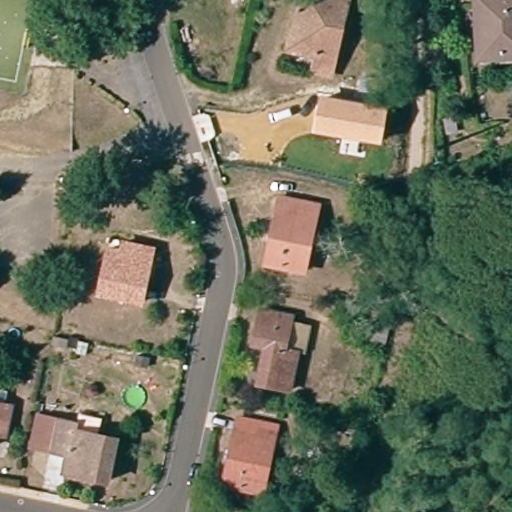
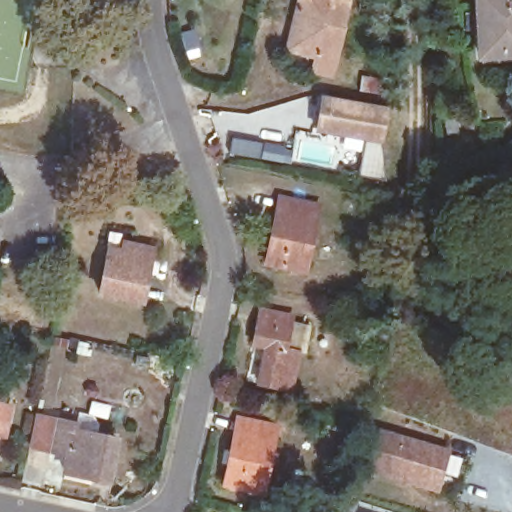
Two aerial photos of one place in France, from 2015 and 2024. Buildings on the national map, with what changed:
unchanged [(314,63),(318,47),(290,39),(301,0),(352,0),(330,69),(314,63)]
unchanged [(477,0),(512,0),(512,55),(487,60),(477,0)]
unchanged [(390,28),(367,22),(371,7),(389,11),(390,28)]
unchanged [(384,139),(320,127),(327,96),(387,109),(384,139)]
unchanged [(269,257),(283,192),(323,200),(309,264),(269,257)]
unchanged [(113,245),(126,248),(128,237),(156,244),(146,299),(104,289),(113,245)]
unchanged [(277,344),(260,341),(269,306),(299,312),(291,348),(308,351),(300,385),(268,378),(277,344)]
unchanged [(0,426),(0,388),(9,390),(6,404),(13,405),(9,427),(0,426)]
unchanged [(84,426),(124,436),(114,478),(73,469),(77,451),(59,448),(35,442),(42,409),(68,415),(84,419),(84,426)]
unchanged [(238,414),(277,422),(263,489),(223,479),(238,414)]
new [(381,438),(448,458),(437,497),(369,477),(381,438)]

